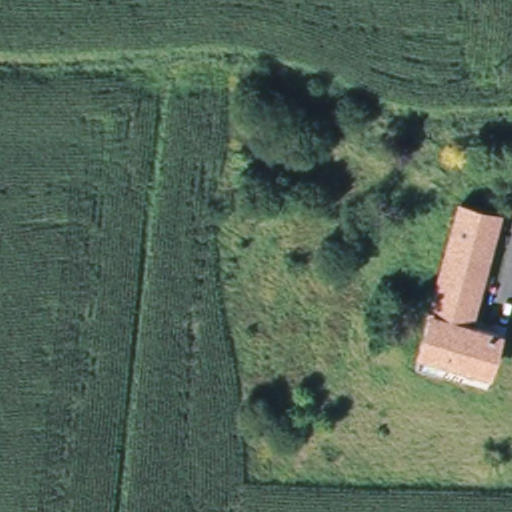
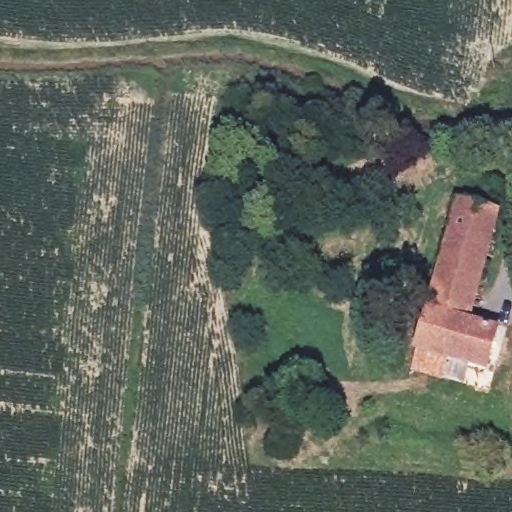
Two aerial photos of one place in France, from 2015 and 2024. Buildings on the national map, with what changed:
unchanged [(494,213),(464,322),(496,330),(484,372),(418,351),(457,203),(494,213)]

